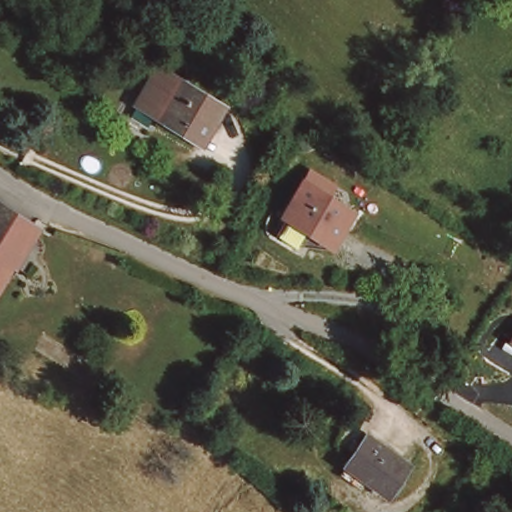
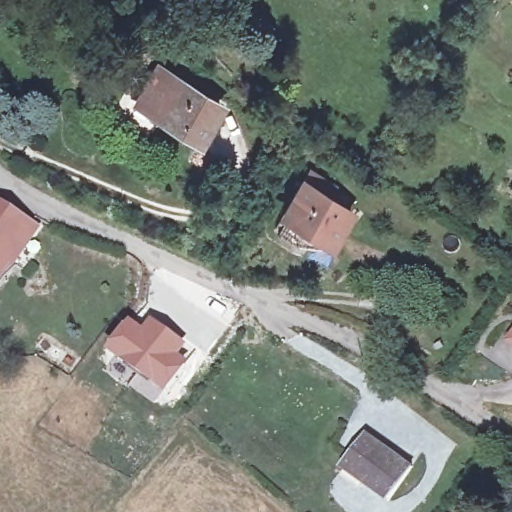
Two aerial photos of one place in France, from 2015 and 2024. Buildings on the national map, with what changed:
unchanged [(137,104),(161,68),(223,107),(200,143),(155,115),(137,104)]
unchanged [(331,239),(314,228),(311,232),(280,213),(300,182),(306,172),(330,187),(324,197),(347,212),(331,239)]
unchanged [(35,221),(0,273),(0,196),(35,221)]
new [(125,320),(140,331),(147,320),(177,343),(170,353),(180,360),(161,387),(107,346),(125,320)]
unchanged [(365,432),(409,463),(388,494),(344,463),(365,432)]

